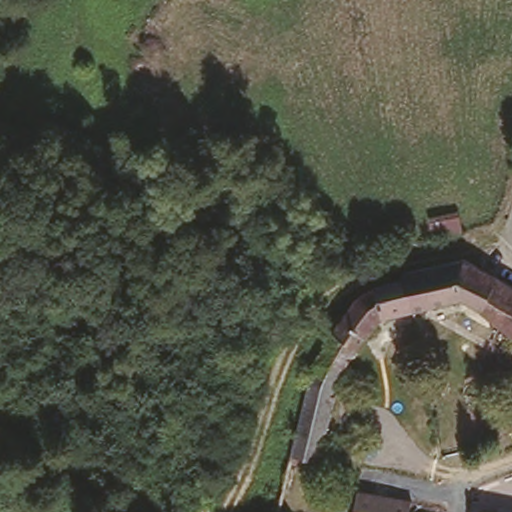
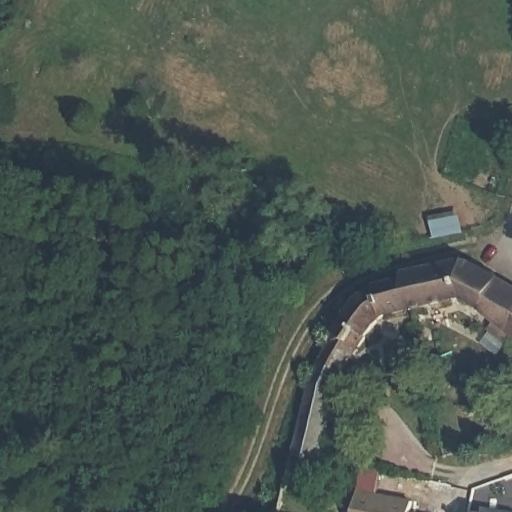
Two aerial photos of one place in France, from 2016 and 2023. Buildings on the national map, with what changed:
unchanged [(457,209),(459,225),(432,230),(429,215),(457,209)]
unchanged [(384,320),(347,373),(332,422),(316,465),(287,461),(301,406),(317,363),(335,328),(342,316),(364,289),(397,283),(397,275),(468,263),(512,289),(512,342),(463,308),(384,320)]
unchanged [(362,494),(417,505),(416,512),(359,512),(362,494)]

